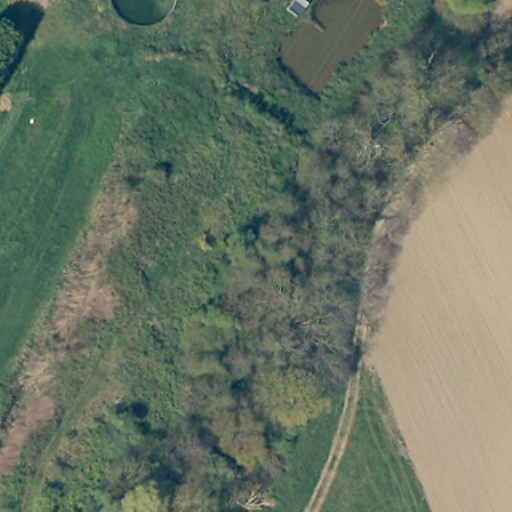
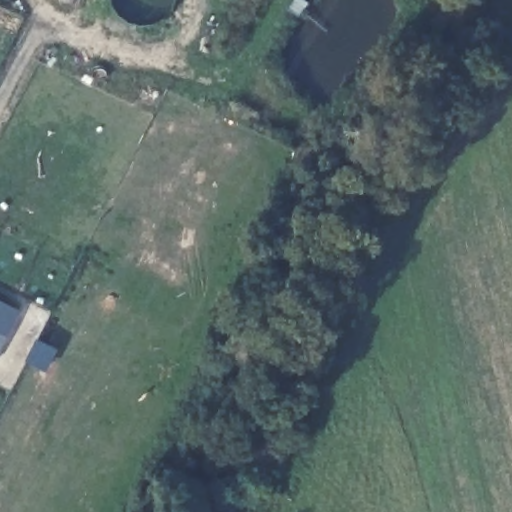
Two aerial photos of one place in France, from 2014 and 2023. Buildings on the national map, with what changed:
new [(22,312),(0,354),(0,301),(22,312)]

